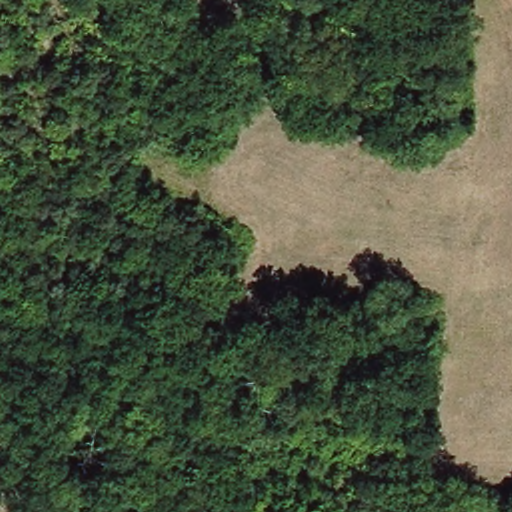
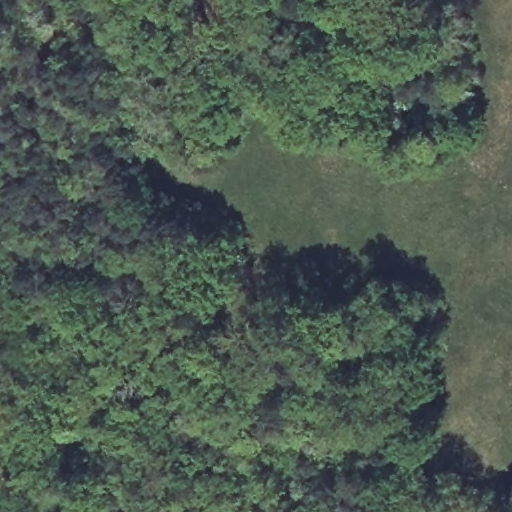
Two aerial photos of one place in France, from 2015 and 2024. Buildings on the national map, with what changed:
[]

